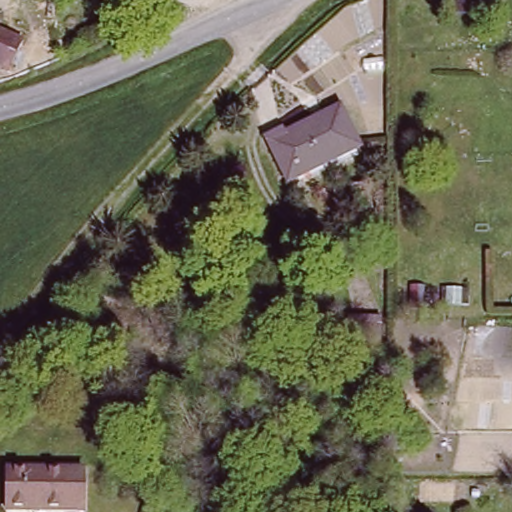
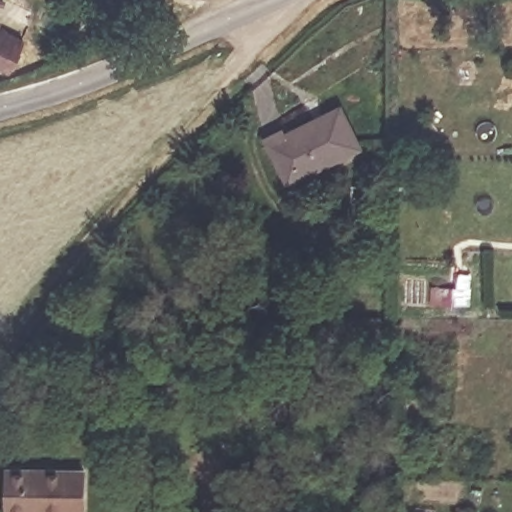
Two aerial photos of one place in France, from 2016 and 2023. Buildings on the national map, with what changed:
unchanged [(27,69),(19,72),(0,62),(0,30),(37,49),(27,69)]
unchanged [(287,129),(288,134),(341,110),(358,150),(285,182),(267,137),(287,129)]
unchanged [(383,224),(382,244),(365,243),(366,224),(383,224)]
unchanged [(393,266),(393,283),(383,283),(383,266),(393,266)]
unchanged [(392,322),(392,346),(361,345),(362,321),(392,322)]
unchanged [(81,466),(80,508),(5,507),(4,466),(81,466)]

